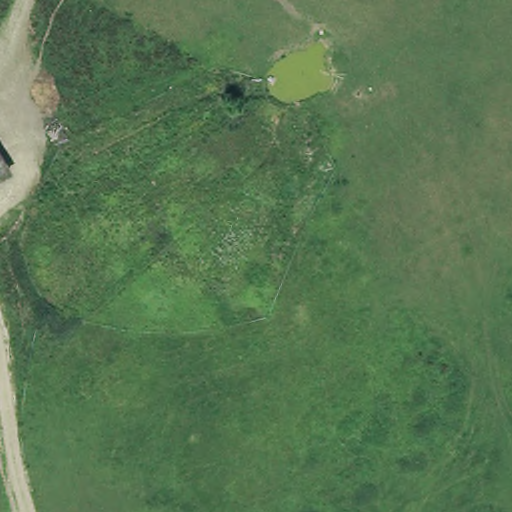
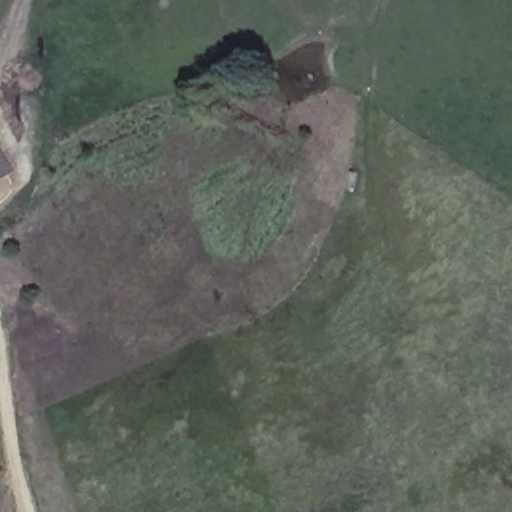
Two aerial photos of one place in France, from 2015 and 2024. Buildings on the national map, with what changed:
unchanged [(3,170),(0,171),(0,164),(3,170)]

